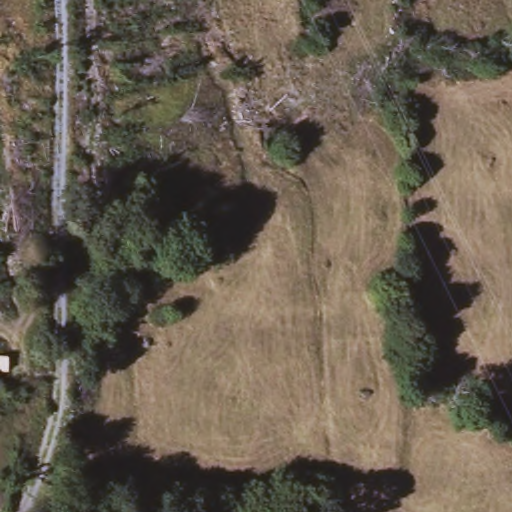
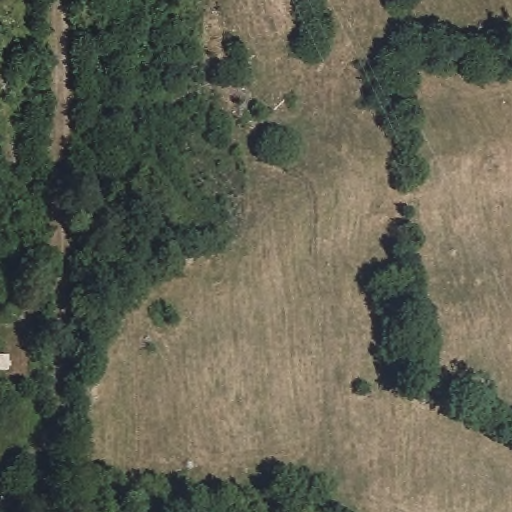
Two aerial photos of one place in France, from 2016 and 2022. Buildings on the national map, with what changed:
unchanged [(11,358),(11,373),(0,373),(0,348),(11,348),(11,358)]

